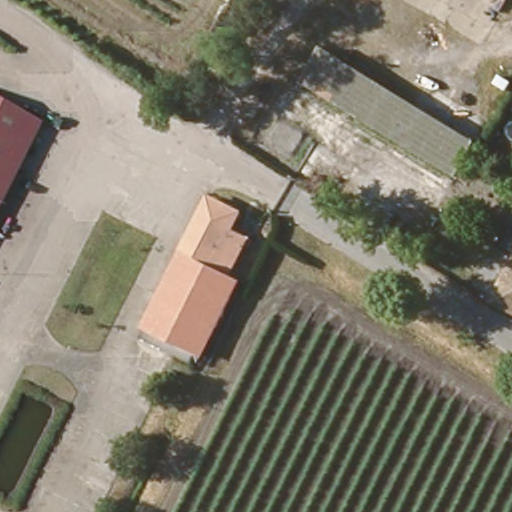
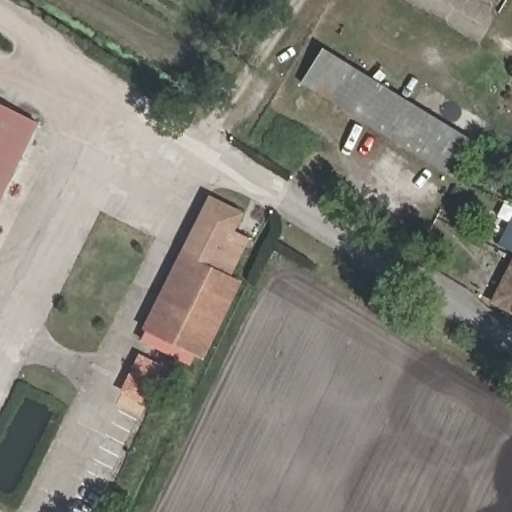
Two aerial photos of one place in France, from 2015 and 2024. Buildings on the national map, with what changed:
unchanged [(340,105),(308,88),(312,80),(323,58),(355,75),(340,105)]
unchanged [(476,137),(460,167),(340,105),(355,75),(476,137)]
unchanged [(20,158),(0,147),(0,104),(38,124),(20,158)]
unchanged [(20,158),(0,196),(0,147),(20,158)]
unchanged [(212,259),(186,312),(154,294),(205,194),(236,209),(229,224),(212,259)]
unchanged [(246,232),(229,266),(238,270),(194,357),(170,344),(186,312),(212,259),(229,224),(246,232)]
unchanged [(512,253),(512,314),(484,302),(512,253)]
unchanged [(170,344),(137,326),(154,294),(186,312),(170,344)]

